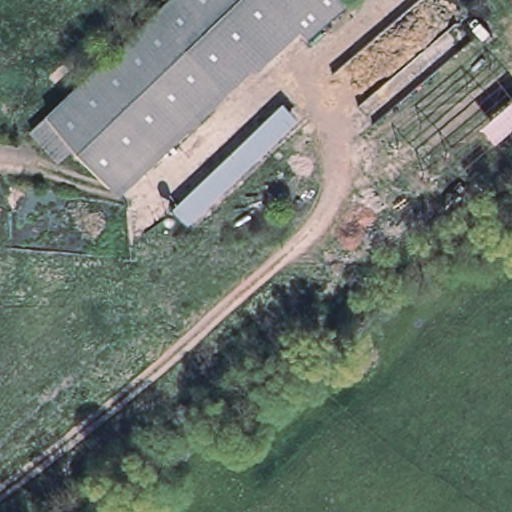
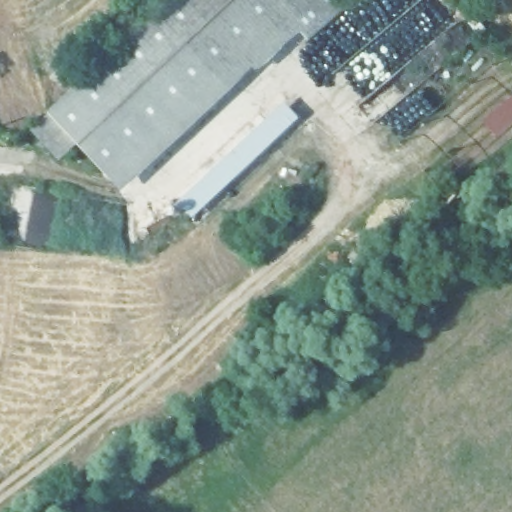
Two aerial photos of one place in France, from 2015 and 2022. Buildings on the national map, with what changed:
unchanged [(307,39),(280,12),(215,75),(153,10),(163,0),(347,0),(307,39)]
unchanged [(215,75),(106,180),(75,148),(43,115),(153,10),(215,75)]
unchanged [(432,172),(421,158),(512,84),(512,108),(432,172)]
unchanged [(293,114),(185,218),(172,205),(280,100),(293,114)]
unchanged [(58,164),(27,131),(43,115),(75,148),(58,164)]

